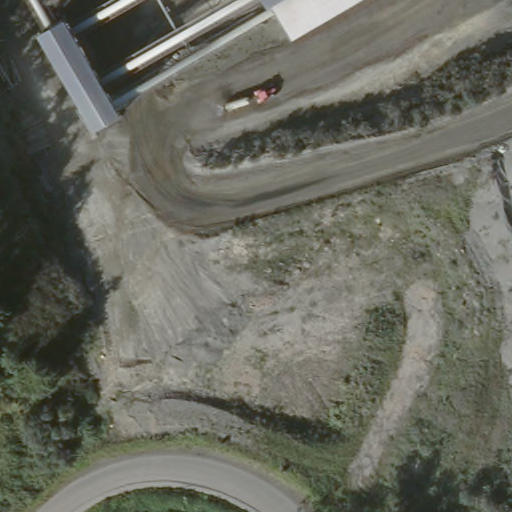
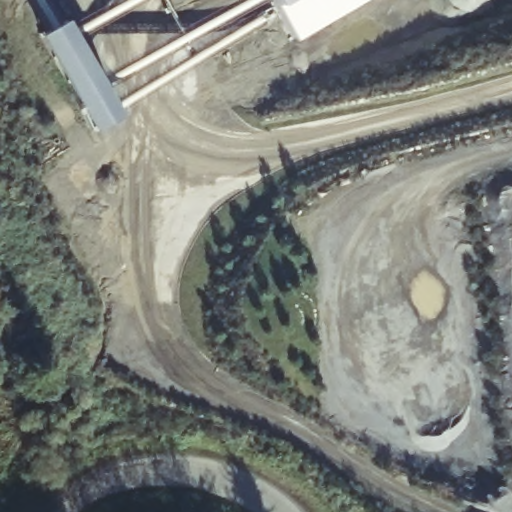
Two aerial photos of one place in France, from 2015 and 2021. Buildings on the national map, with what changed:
unchanged [(271,0),(360,0),(294,39),(271,0)]
unchanged [(68,18),(123,118),(97,131),(42,34),(68,18)]

